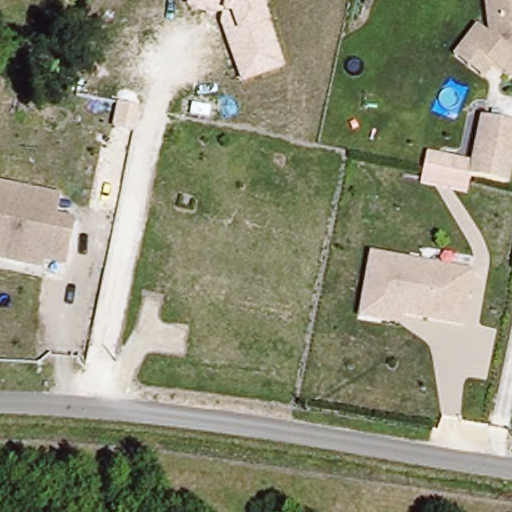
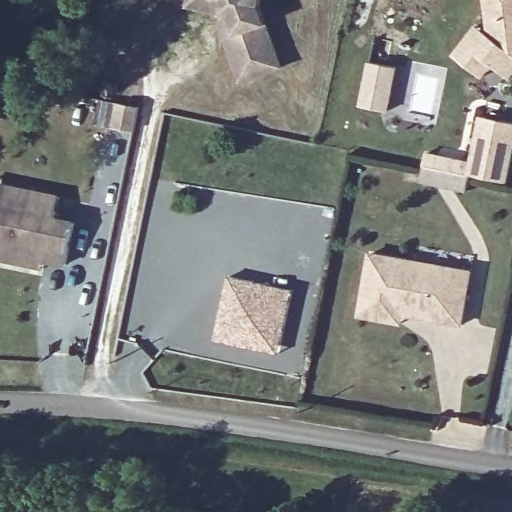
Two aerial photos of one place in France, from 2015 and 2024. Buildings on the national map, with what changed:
unchanged [(266,15),(286,69),(242,84),(219,27),(223,15),(188,7),(190,0),(269,0),(266,15)]
unchanged [(512,81),(495,69),(484,82),(452,57),(475,32),(488,40),(483,0),(512,0),(512,81)]
new [(369,61),(398,67),(390,111),(360,105),(369,61)]
new [(104,102),(124,106),(120,131),(100,127),(104,102)]
unchanged [(512,152),(509,177),(468,173),(480,111),(512,119),(512,152)]
unchanged [(463,192),(420,185),(427,150),(471,160),(468,173),(463,192)]
unchanged [(61,197),(58,219),(77,224),(69,268),(48,266),(46,273),(0,264),(0,183),(61,197)]
unchanged [(475,270),(464,326),(405,315),(403,326),(358,317),(369,252),(475,270)]
new [(267,352),(235,346),(214,341),(219,320),(228,277),(292,292),(280,345),(278,356),(267,352)]

